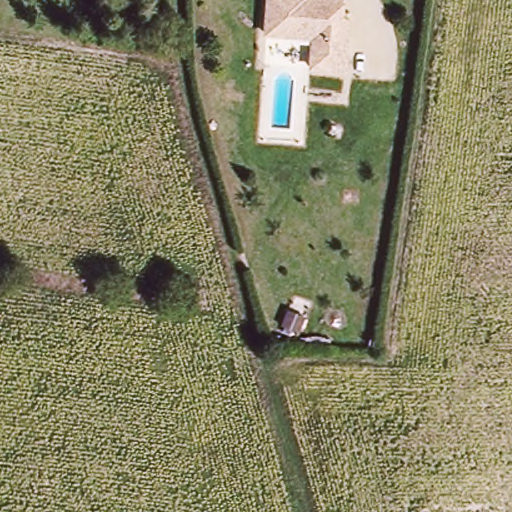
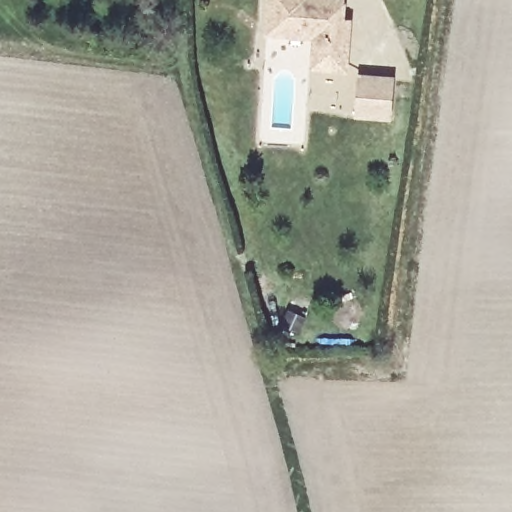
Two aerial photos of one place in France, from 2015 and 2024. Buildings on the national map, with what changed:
unchanged [(337,35),(345,35),(343,66),(309,64),(311,35),(262,30),(265,0),(340,0),(339,15),(337,35)]
new [(359,74),(395,76),(392,114),(356,112),(359,74)]

